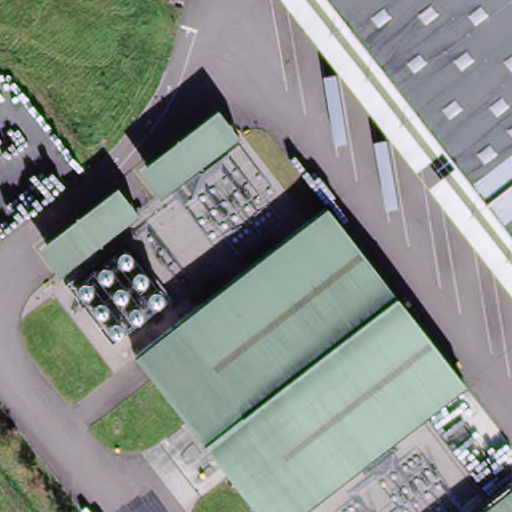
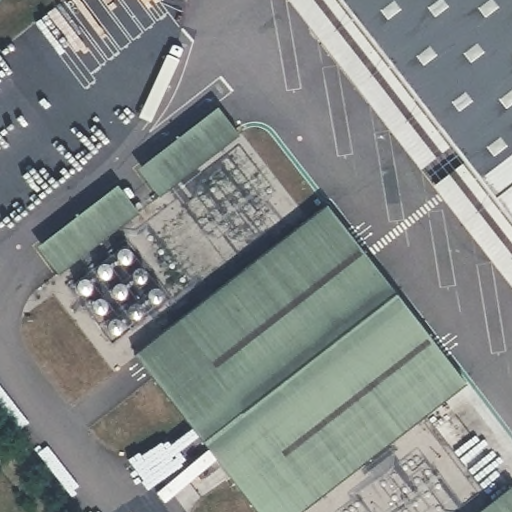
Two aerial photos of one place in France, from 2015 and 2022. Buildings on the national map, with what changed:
unchanged [(512,0),(512,229),(335,0),(512,0)]
unchanged [(122,373),(36,255),(120,193),(140,218),(162,200),(141,172),(219,113),(239,143),(305,229),(139,360),(122,373)]
unchanged [(430,416),(307,512),(306,512),(257,512),(139,360),(305,229),(325,213),(466,388),(430,416)]
unchanged [(495,506),(512,492),(512,512),(307,512),(430,416),(495,506)]

